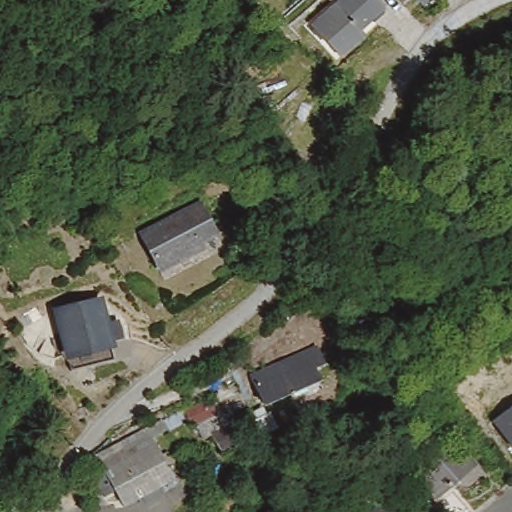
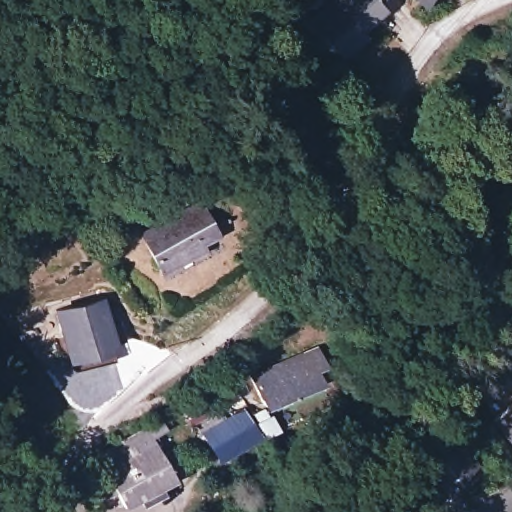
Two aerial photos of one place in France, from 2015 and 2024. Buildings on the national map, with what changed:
unchanged [(329,0),(375,0),(383,9),(365,25),(368,32),(341,59),(307,19),(329,0)]
unchanged [(410,0),(425,0),(419,7),(410,0)]
unchanged [(130,226),(198,194),(220,244),(158,273),(130,226)]
unchanged [(51,311),(100,302),(110,351),(62,360),(51,311)]
unchanged [(247,379),(311,351),(321,378),(260,406),(247,379)]
new [(493,422),(512,407),(512,447),(493,422)]
new [(199,431),(242,408),(259,438),(216,462),(199,431)]
unchanged [(475,509),(472,512),(453,512),(416,473),(453,437),(475,460),(451,484),(475,509)]
unchanged [(173,478),(126,507),(99,461),(124,447),(131,460),(158,446),(173,478)]
unchanged [(375,512),(380,507),(384,512),(375,512)]

